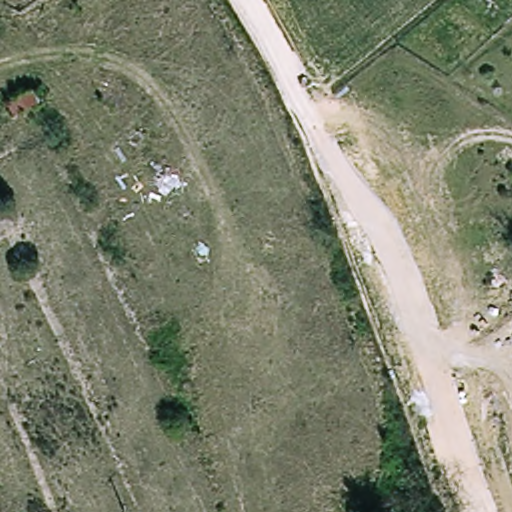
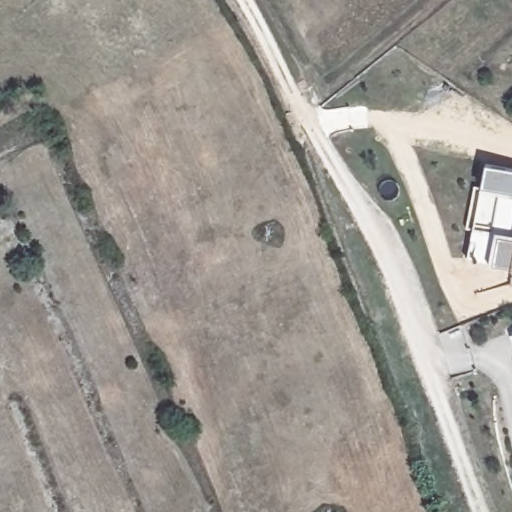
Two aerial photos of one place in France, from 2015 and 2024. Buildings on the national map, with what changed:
new [(512,167),(512,267),(466,259),(483,162),(512,167)]

